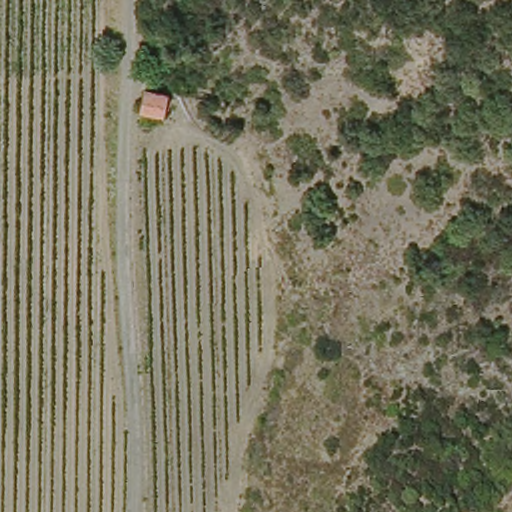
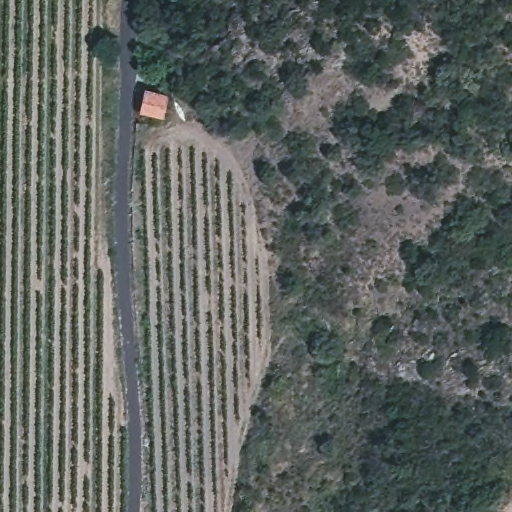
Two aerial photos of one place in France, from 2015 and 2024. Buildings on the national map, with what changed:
unchanged [(142,71),(179,74),(178,116),(133,115),(142,71)]

